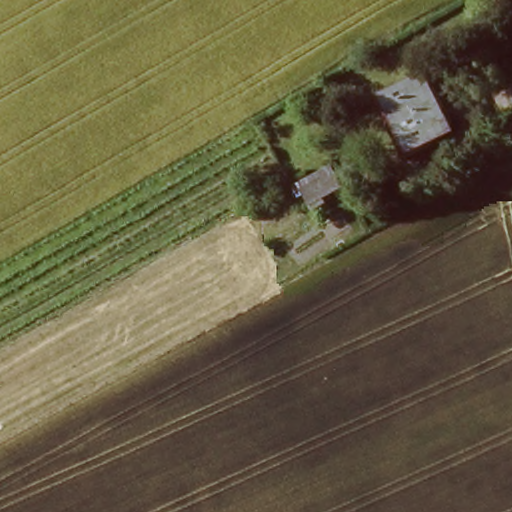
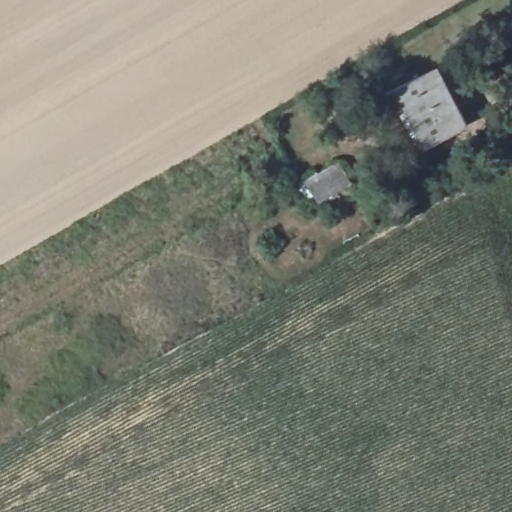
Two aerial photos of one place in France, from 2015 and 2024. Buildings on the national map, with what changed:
unchanged [(411,120),(396,94),(433,71),(449,99),(411,120)]
unchanged [(449,99),(462,122),(424,144),(411,120),(449,99)]

